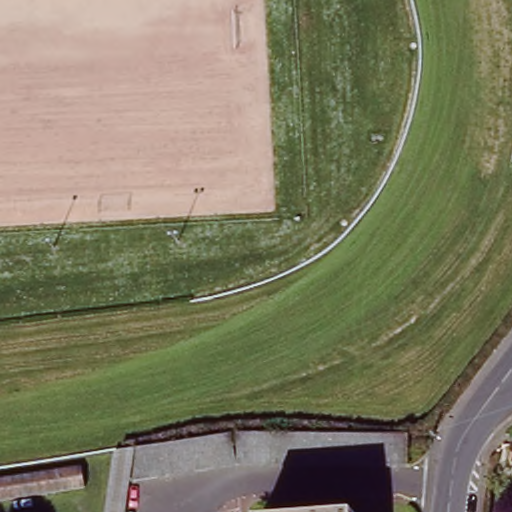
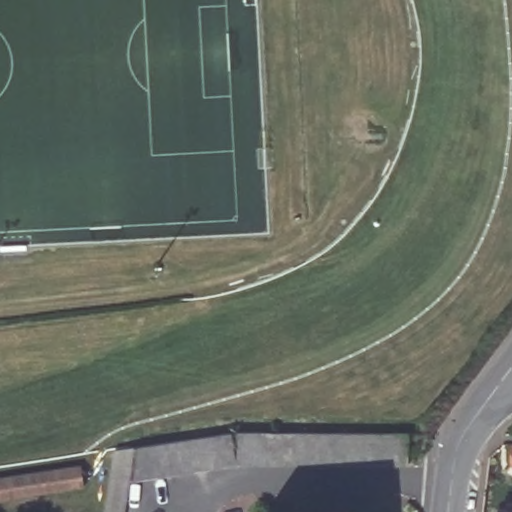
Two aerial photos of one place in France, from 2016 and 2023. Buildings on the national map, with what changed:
unchanged [(227,431),(232,464),(136,481),(129,447),(227,431)]
unchanged [(407,432),(406,465),(234,463),(235,431),(407,432)]
unchanged [(512,438),(512,464),(510,463),(510,437),(512,438)]
unchanged [(84,486),(0,498),(0,478),(81,465),(84,486)]
unchanged [(344,512),(281,512),(342,502),(344,512)]

